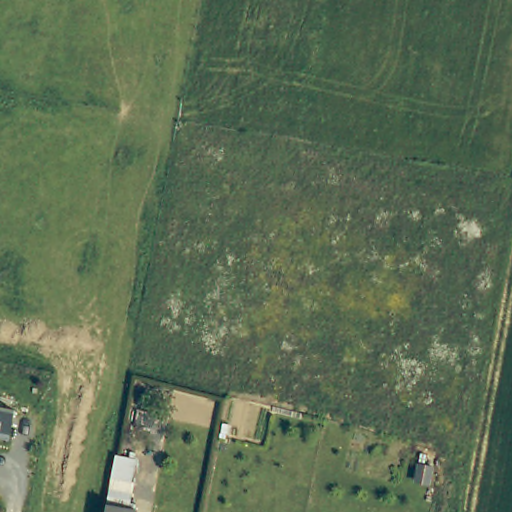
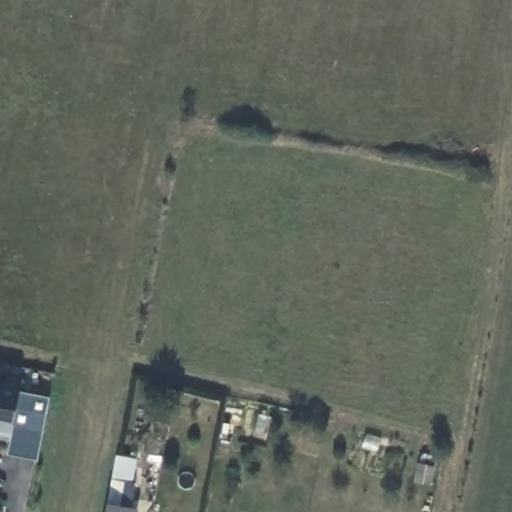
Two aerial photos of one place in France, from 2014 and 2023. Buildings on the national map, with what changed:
demolished [(1,386),(0,392),(0,385),(1,386)]
new [(19,392),(49,398),(37,461),(7,454),(11,436),(0,434),(0,388),(19,392)]
demolished [(21,408),(16,437),(0,434),(0,404),(21,408)]
unchanged [(117,454),(140,459),(131,506),(139,508),(138,512),(107,512),(117,454)]

